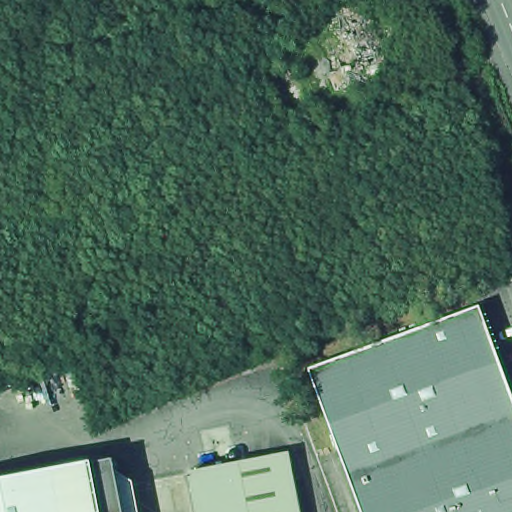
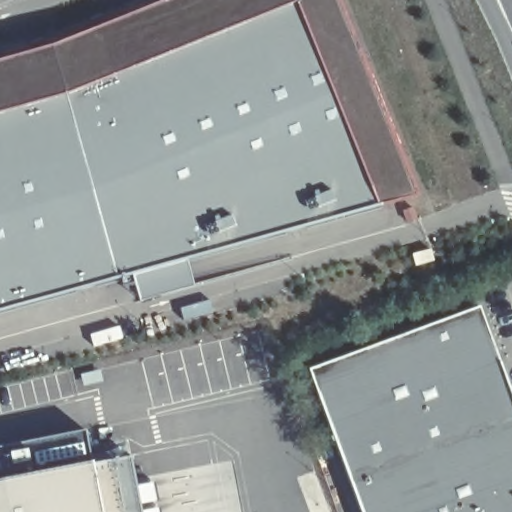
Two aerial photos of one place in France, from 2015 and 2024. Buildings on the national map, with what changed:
new [(81,47),(211,0),(317,0),(381,178),(412,212),(0,326),(0,72),(81,47)]
unchanged [(512,398),(512,512),(361,512),(309,371),(479,308),(512,398)]
demolished [(191,473),(291,453),(302,512),(198,512),(191,473)]
unchanged [(132,483),(138,512),(0,512),(0,482),(111,462),(132,483)]

